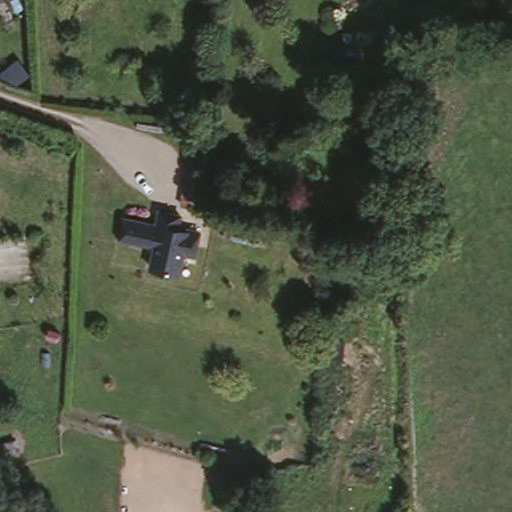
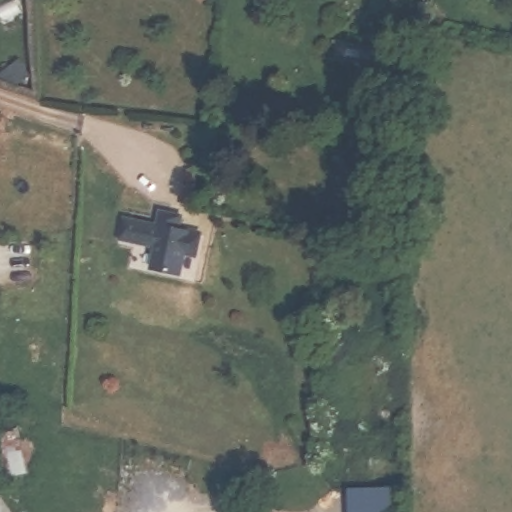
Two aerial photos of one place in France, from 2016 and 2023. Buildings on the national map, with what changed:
unchanged [(200,171),(192,207),(181,205),(188,168),(200,171)]
unchanged [(178,245),(174,266),(148,259),(153,239),(114,230),(119,209),(151,217),(154,202),(164,204),(178,207),(175,221),(196,225),(193,240),(191,248),(178,245)]
new [(391,489),(392,512),(350,512),(350,489),(391,489)]

